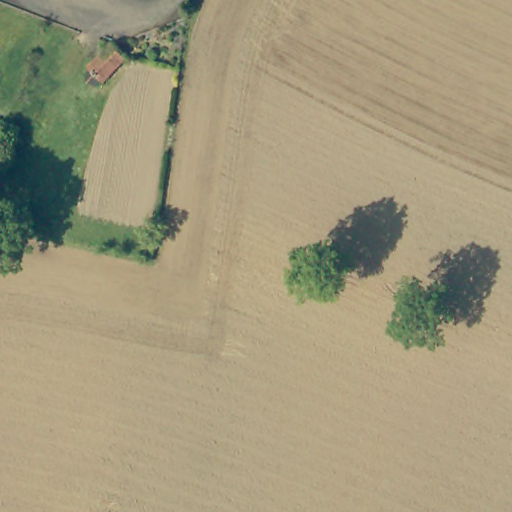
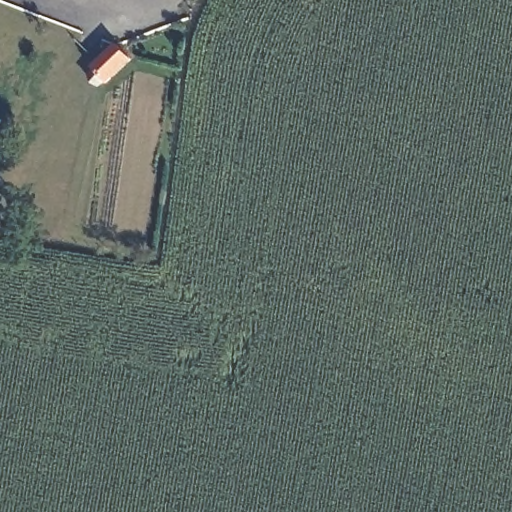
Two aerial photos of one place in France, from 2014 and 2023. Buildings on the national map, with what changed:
unchanged [(105,78),(100,77),(91,76),(90,66),(115,42),(132,56),(105,78)]

